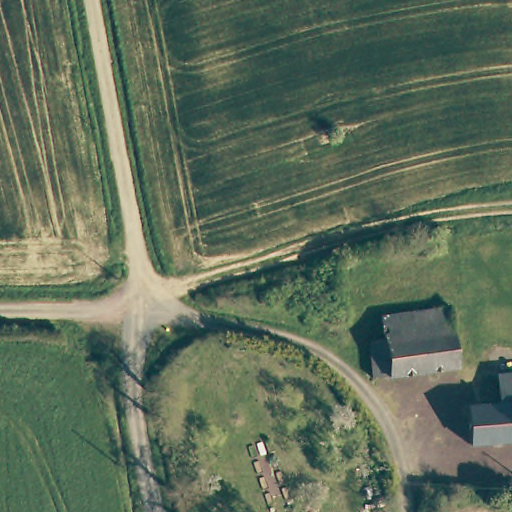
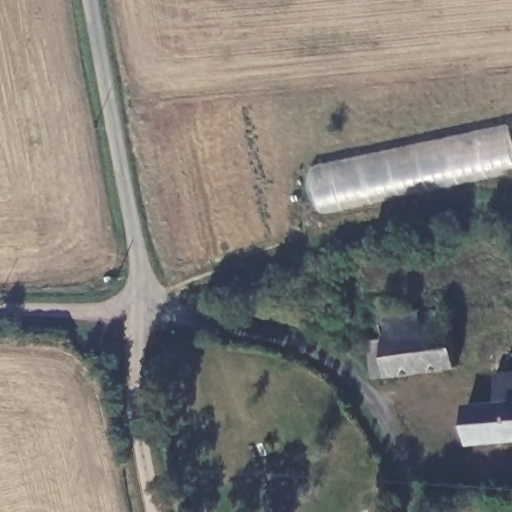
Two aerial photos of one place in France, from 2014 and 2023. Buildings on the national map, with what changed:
new [(512,170),(325,211),(314,171),(508,128),(512,141),(512,170)]
unchanged [(456,367),(372,379),(367,342),(381,340),(378,317),(448,307),(456,367)]
unchanged [(512,403),(478,406),(477,377),(512,374),(512,403)]
unchanged [(465,407),(478,406),(512,403),(512,440),(468,444),(465,407)]

